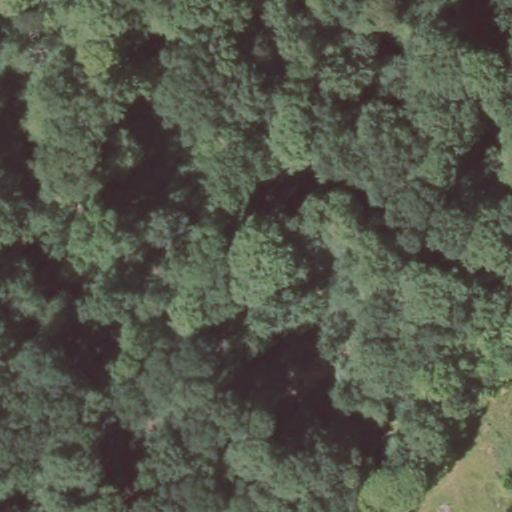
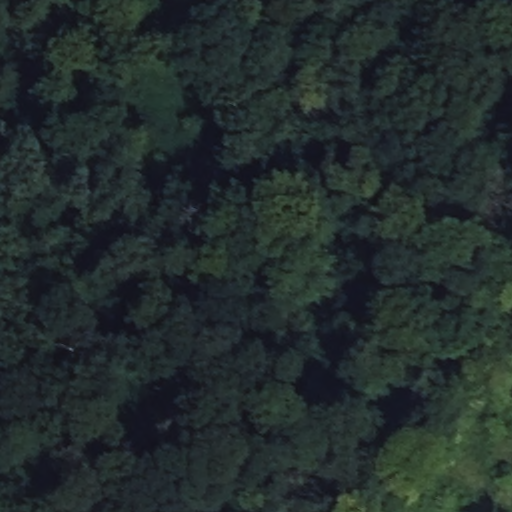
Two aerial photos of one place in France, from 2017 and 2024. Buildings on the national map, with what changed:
[]

